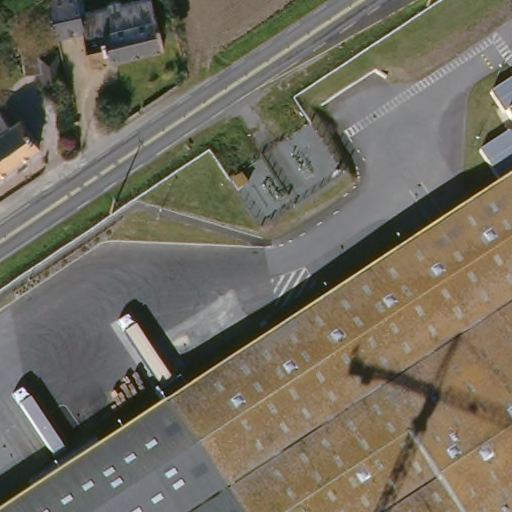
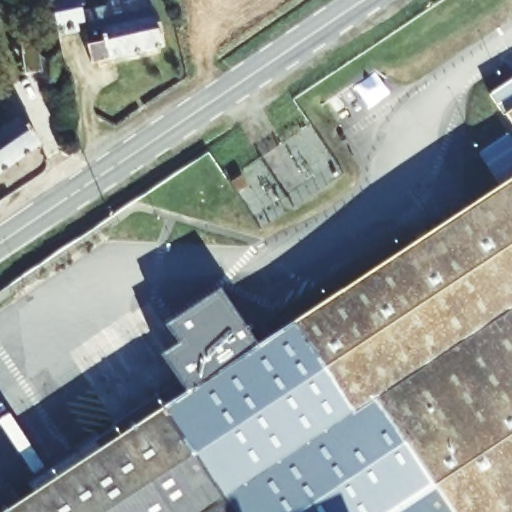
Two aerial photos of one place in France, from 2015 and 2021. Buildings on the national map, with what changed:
unchanged [(161,6),(168,42),(95,57),(88,24),(62,30),(55,0),(82,0),(84,7),(116,0),(159,0),(161,6)]
unchanged [(44,87),(40,70),(26,71),(22,46),(36,45),(38,54),(60,51),(61,57),(66,84),(44,87)]
unchanged [(11,120),(20,114),(41,143),(0,171),(0,106),(11,120)]
unchanged [(512,114),(512,143),(499,123),(512,114)]
unchanged [(80,458),(161,405),(164,408),(251,349),(512,179),(512,512),(0,512),(0,494),(72,447),(80,458)]
new [(160,357),(178,343),(167,324),(221,289),(258,345),(251,349),(186,393),(160,357)]

